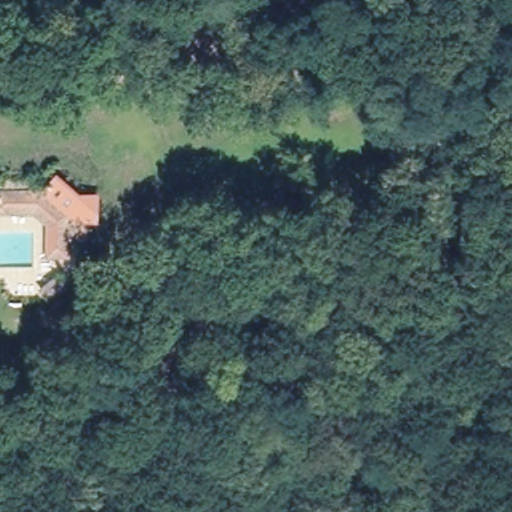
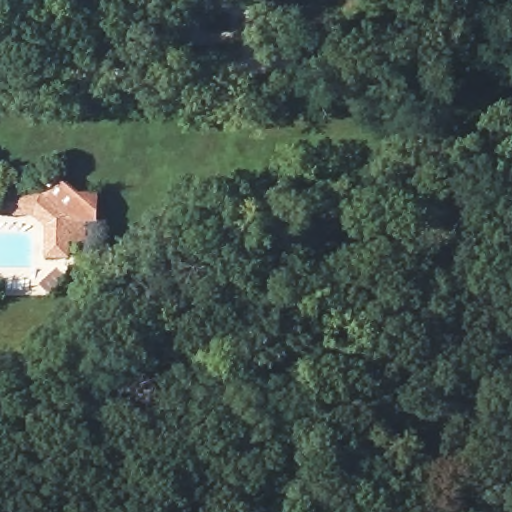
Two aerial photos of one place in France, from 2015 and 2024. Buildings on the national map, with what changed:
unchanged [(99,195),(99,225),(82,225),(82,239),(72,239),(71,257),(45,257),(45,225),(33,214),(0,214),(0,189),(45,189),(58,175),(81,195),(99,195)]

